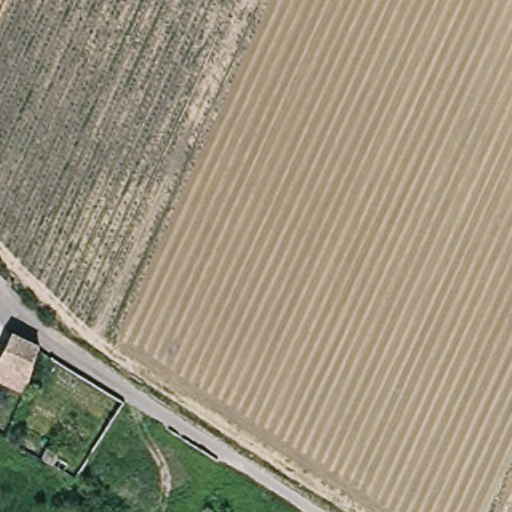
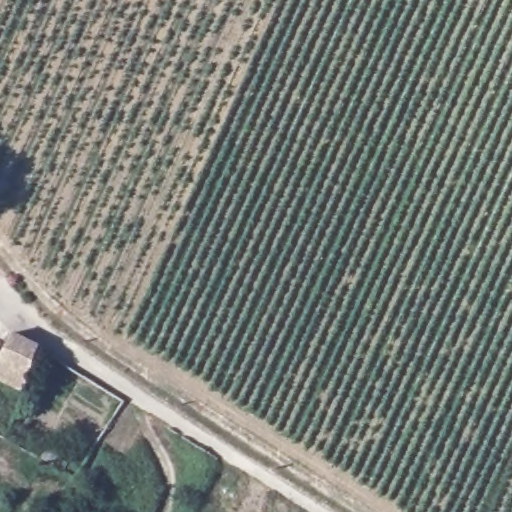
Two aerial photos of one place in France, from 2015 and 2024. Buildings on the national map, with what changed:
unchanged [(6,320),(30,344),(14,389),(0,382),(0,335),(6,320)]
unchanged [(40,441),(52,447),(50,452),(47,459),(35,452),(40,441)]

